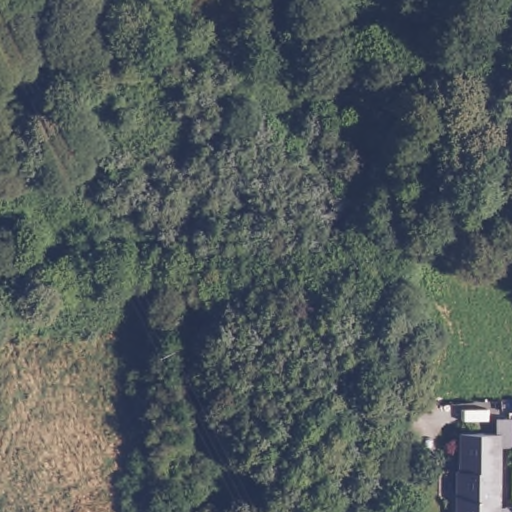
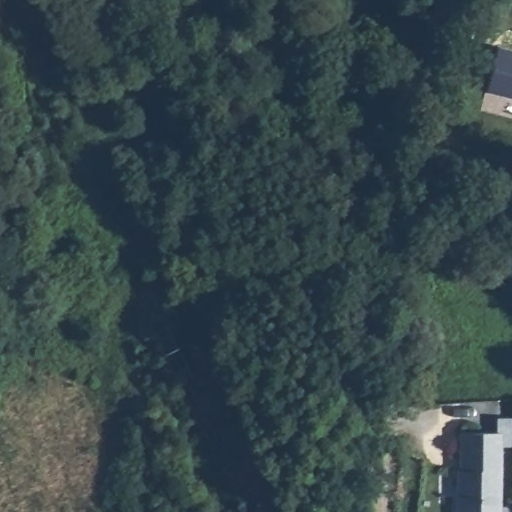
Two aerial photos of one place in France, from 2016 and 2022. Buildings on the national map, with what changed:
new [(487,91),(499,46),(512,50),(512,98),(487,91)]
unchanged [(459,432),(494,431),(494,416),(512,416),(512,443),(498,443),(498,512),(456,512),(459,432)]

